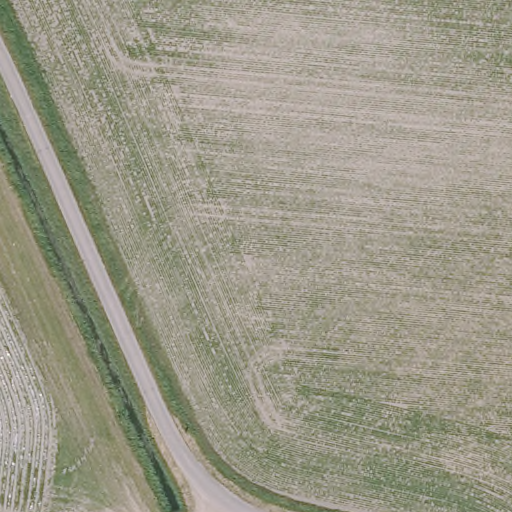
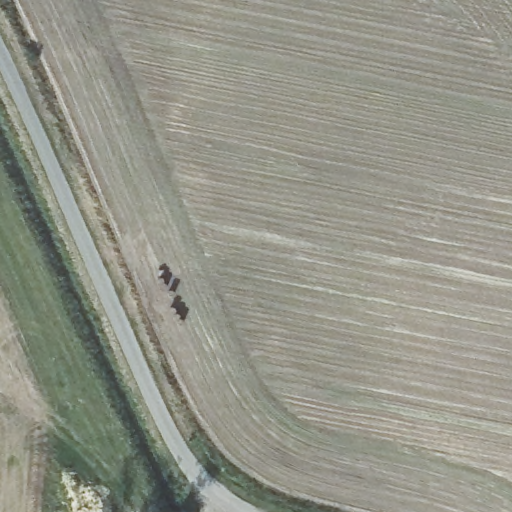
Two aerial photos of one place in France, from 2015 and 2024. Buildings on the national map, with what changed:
[]

